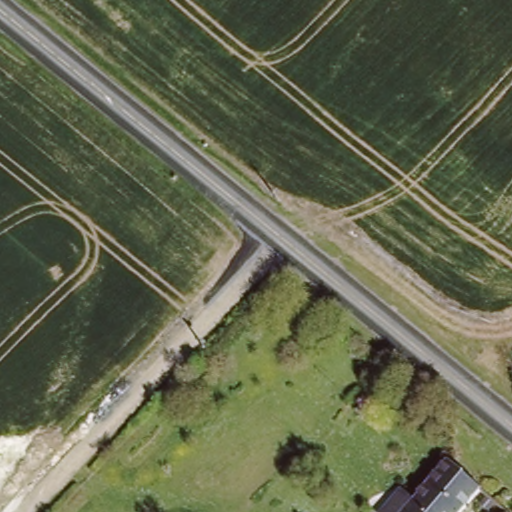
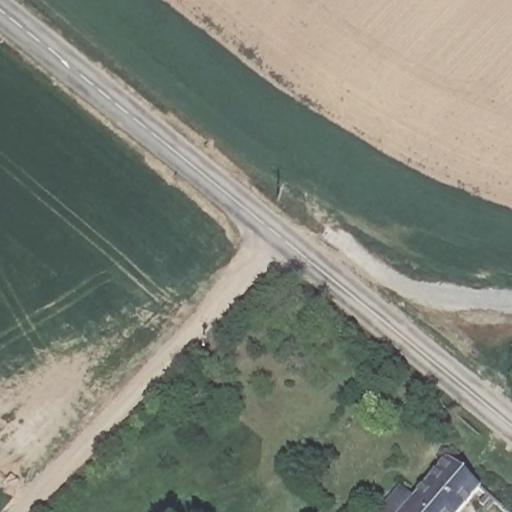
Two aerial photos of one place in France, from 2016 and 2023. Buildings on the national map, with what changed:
unchanged [(405,480),(417,491),(452,450),(484,477),(454,512),(377,512),(405,480)]

